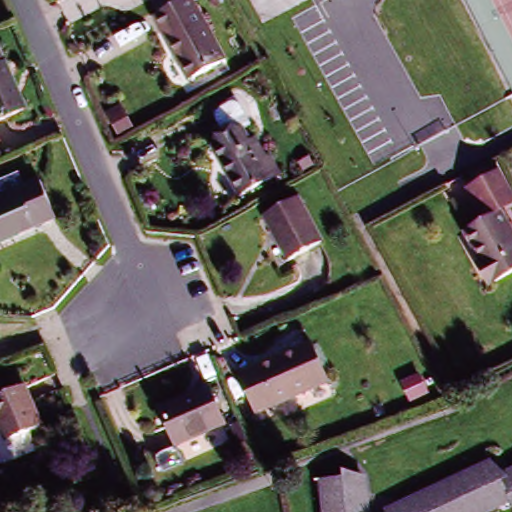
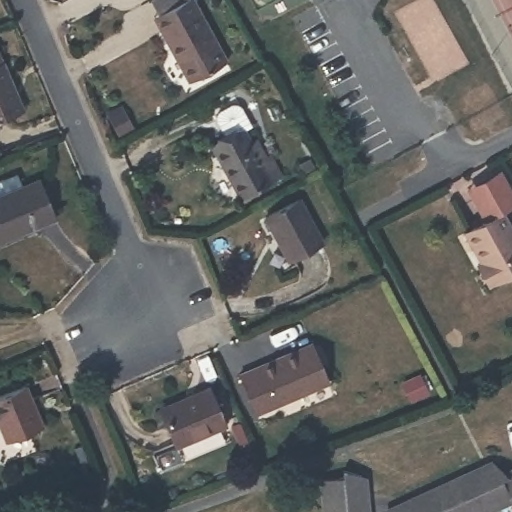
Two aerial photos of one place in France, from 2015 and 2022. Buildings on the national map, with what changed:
unchanged [(225,59),(185,78),(174,52),(155,9),(163,5),(160,0),(198,0),(225,59)]
unchanged [(0,132),(0,64),(23,122),(0,132)]
unchanged [(269,173),(275,172),(283,191),(270,197),(237,211),(213,161),(230,153),(215,122),(240,111),(254,142),(246,146),(254,163),(262,159),(269,173)]
unchanged [(61,223),(0,245),(0,202),(48,184),(61,223)]
unchanged [(322,248),(289,265),(266,220),(300,203),(322,248)]
unchanged [(468,236),(474,233),(507,217),(512,227),(512,280),(495,289),(490,291),(480,269),(484,267),(468,236)]
unchanged [(255,424),(237,384),(293,359),(319,347),(323,357),(336,386),(255,424)]
unchanged [(9,445),(0,424),(0,402),(26,392),(43,430),(9,445)]
unchanged [(225,430),(180,448),(165,412),(210,392),(225,430)]
unchanged [(505,481),(498,484),(505,499),(495,504),(495,510),(491,512),(397,512),(491,468),(505,481)]
unchanged [(330,490),(328,479),(345,477),(346,471),(363,475),(367,512),(326,512),(325,493),(330,490)]
unchanged [(512,478),(512,512),(510,512),(505,499),(498,484),(505,481),(512,478)]

